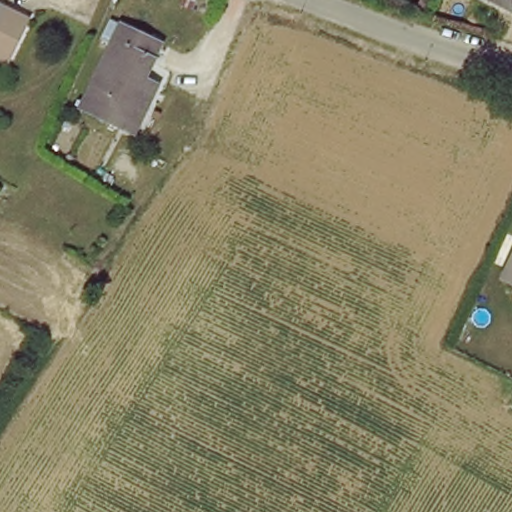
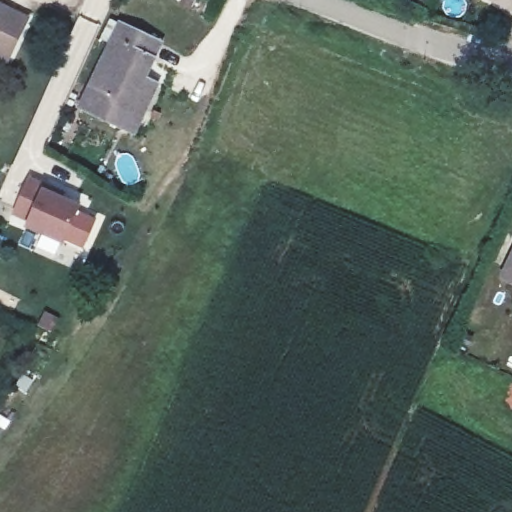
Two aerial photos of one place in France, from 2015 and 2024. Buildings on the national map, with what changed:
unchanged [(487,2),(483,0),(512,0),(512,10),(510,14),(487,2)]
unchanged [(30,14),(25,23),(10,58),(0,54),(0,1),(30,14)]
unchanged [(138,133),(125,128),(84,111),(116,26),(160,43),(145,79),(158,85),(138,133)]
new [(28,223),(11,215),(28,176),(65,192),(65,197),(82,205),(65,245),(25,229),(28,223)]
unchanged [(512,268),(512,284),(505,280),(512,268)]

